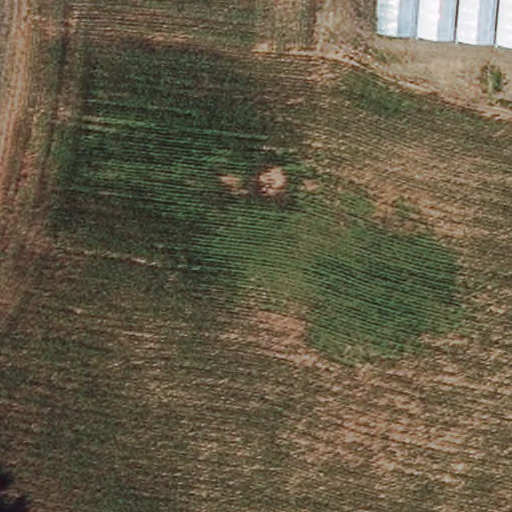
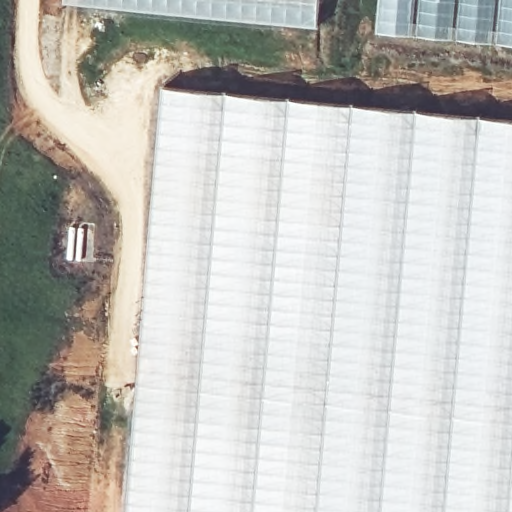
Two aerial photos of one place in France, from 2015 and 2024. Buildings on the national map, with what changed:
new [(63,3),(63,0),(322,0),(320,25),(63,3)]
unchanged [(379,0),(512,0),(512,46),(376,32),(379,0)]
new [(123,512),(162,87),(512,118),(512,512),(123,512)]

